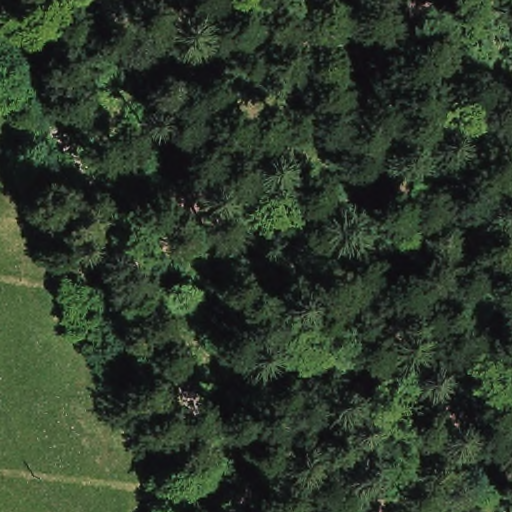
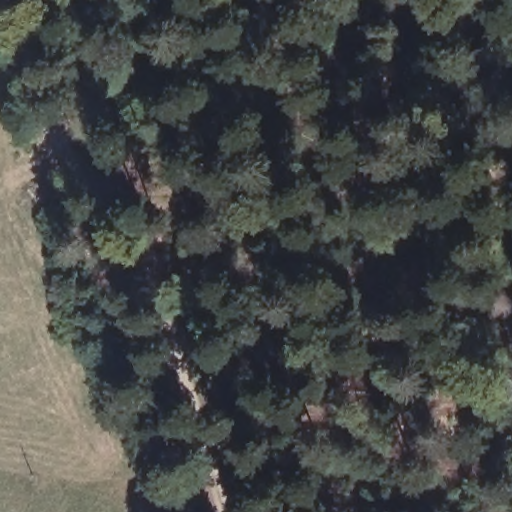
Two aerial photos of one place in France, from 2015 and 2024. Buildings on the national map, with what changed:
[]

